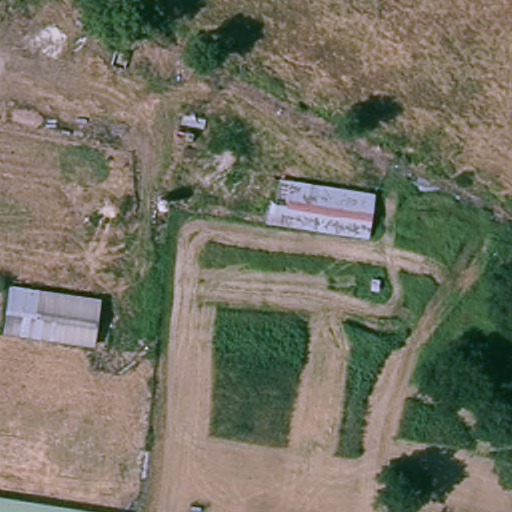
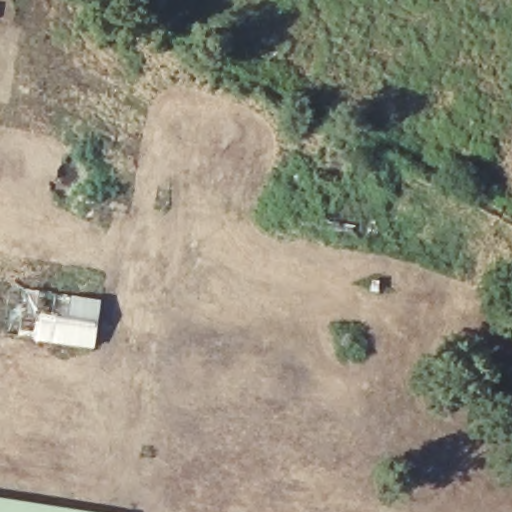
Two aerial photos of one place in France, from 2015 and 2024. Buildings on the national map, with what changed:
demolished [(303,181),(376,187),(374,234),(292,226),(303,181)]
unchanged [(104,297),(99,346),(5,335),(12,286),(104,297)]
unchanged [(132,512),(0,512),(0,493),(132,508),(132,512)]

